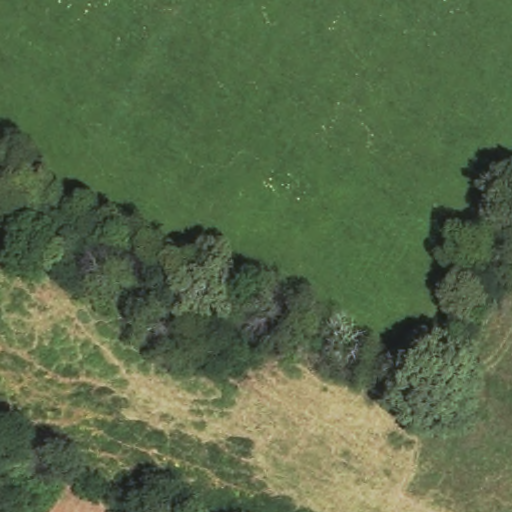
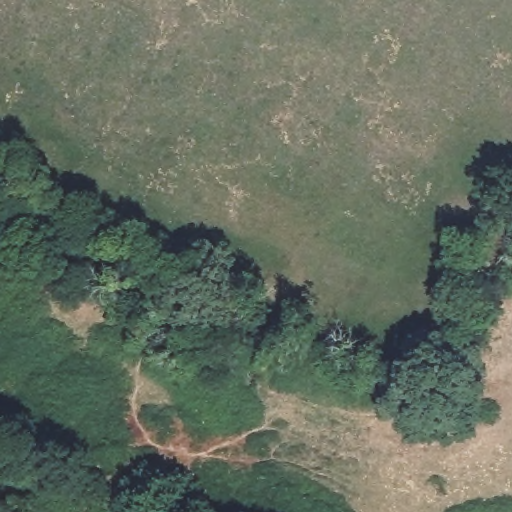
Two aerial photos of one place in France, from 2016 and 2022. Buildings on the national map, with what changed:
unchanged [(487,318),(479,338),(456,327),(463,308),(487,318)]

